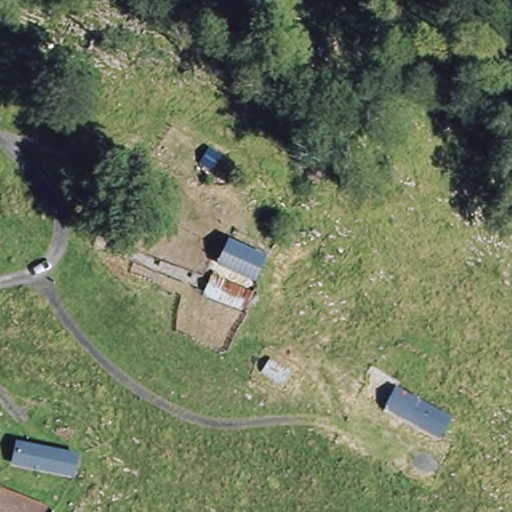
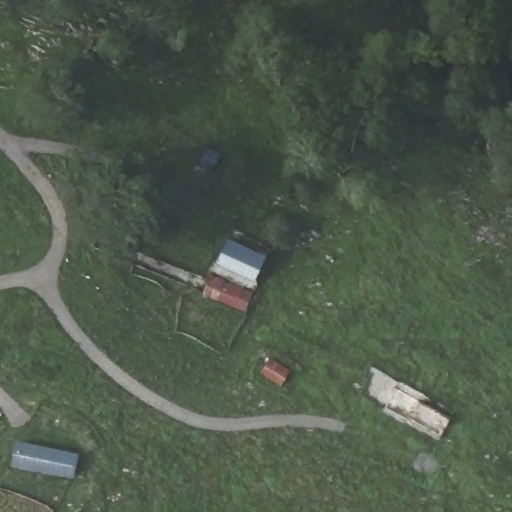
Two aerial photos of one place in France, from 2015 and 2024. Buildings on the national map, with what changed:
unchanged [(232,241),(270,260),(260,278),(222,260),(232,241)]
unchanged [(215,281),(255,298),(245,318),(205,300),(215,281)]
unchanged [(276,365),(293,378),(282,392),(264,380),(276,365)]
unchanged [(404,383),(456,411),(444,432),(393,403),(404,383)]
unchanged [(27,440),(84,455),(78,480),(20,465),(27,440)]

